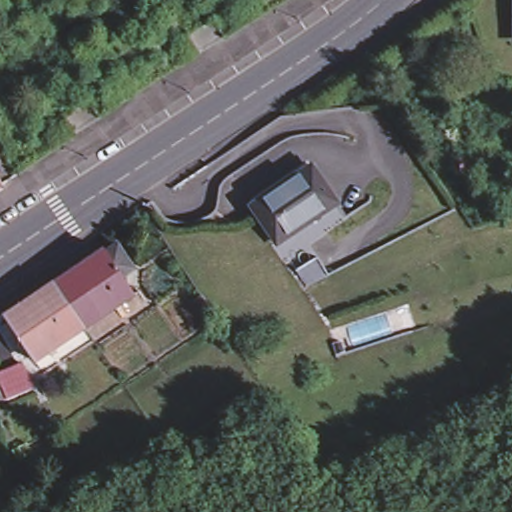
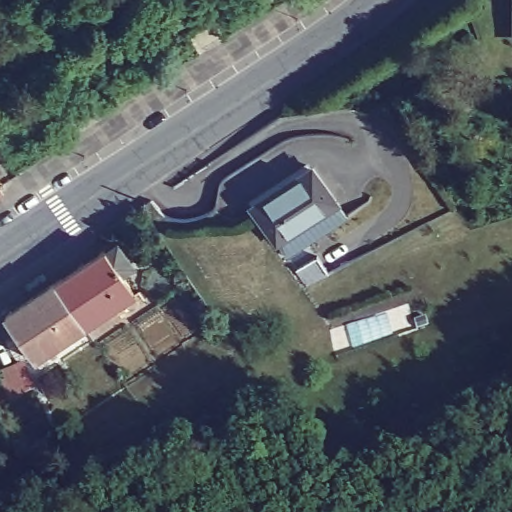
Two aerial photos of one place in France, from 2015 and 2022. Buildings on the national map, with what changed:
unchanged [(323,186),(328,192),(332,199),(273,241),(250,207),(247,202),(305,160),(323,186)]
unchanged [(0,190),(0,187),(2,189),(0,190)]
unchanged [(0,312),(100,247),(130,295),(27,359),(0,314),(0,312)]
unchanged [(322,269),(302,284),(290,268),(310,253),(322,269)]

